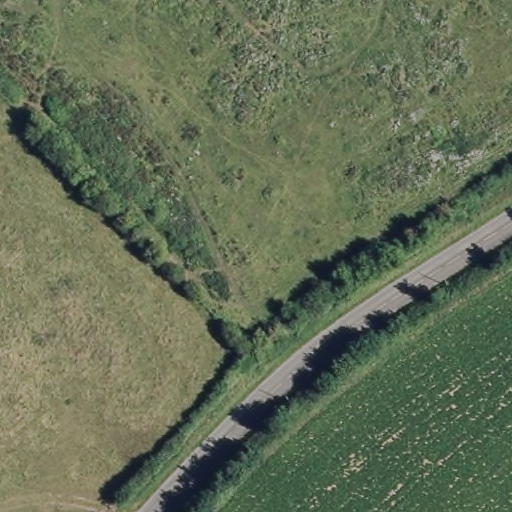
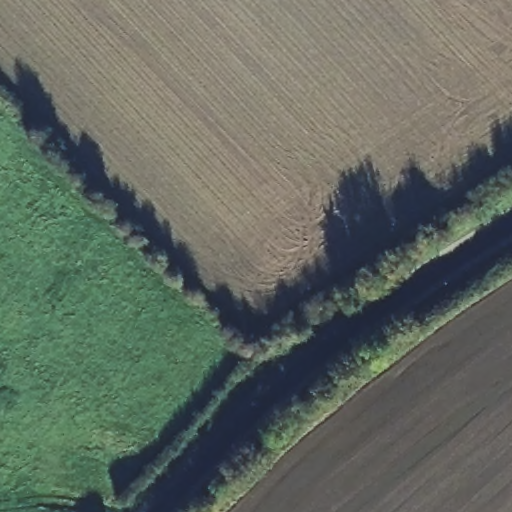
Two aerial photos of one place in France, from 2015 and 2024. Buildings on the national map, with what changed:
[]

